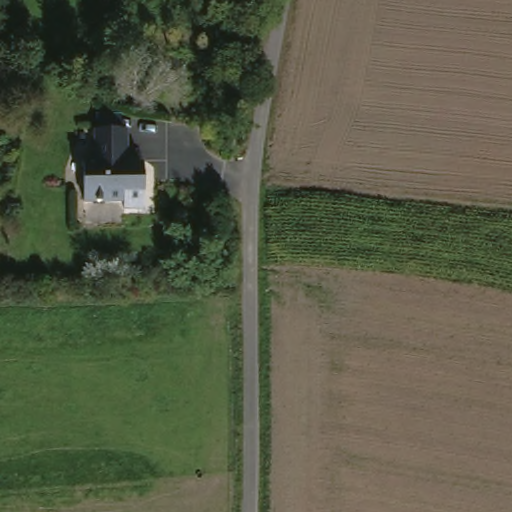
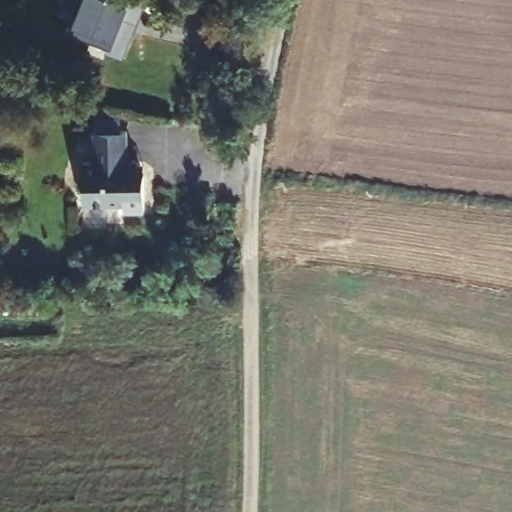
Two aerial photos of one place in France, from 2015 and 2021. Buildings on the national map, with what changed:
new [(105,52),(107,49),(71,34),(73,27),(79,10),(60,1),(60,0),(120,0),(125,2),(125,0),(146,0),(122,59),(105,52)]
unchanged [(92,157),(102,156),(104,127),(133,127),(132,163),(152,162),(151,204),(90,202),(92,157)]

